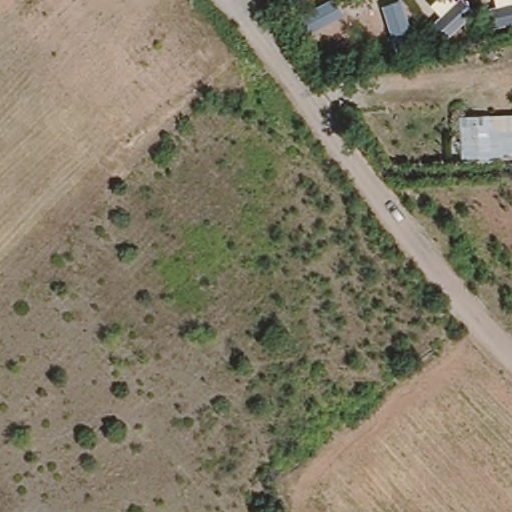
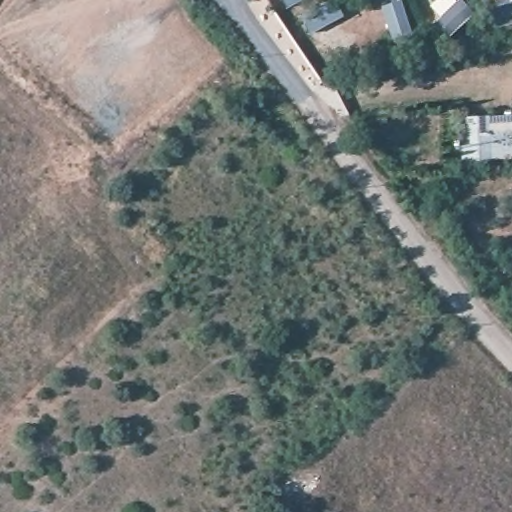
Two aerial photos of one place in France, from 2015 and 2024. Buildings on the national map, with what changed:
unchanged [(456,118),(512,116),(512,164),(458,164),(456,118)]

